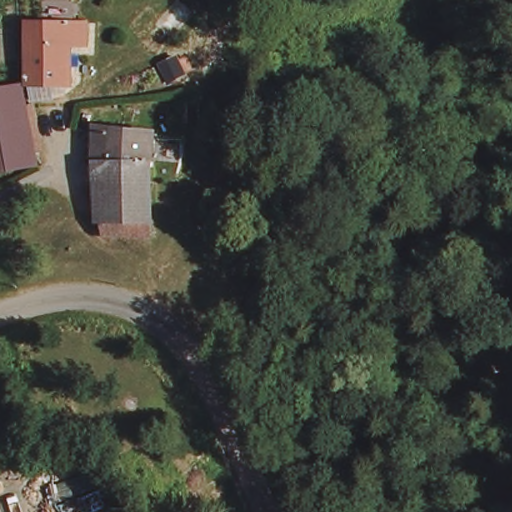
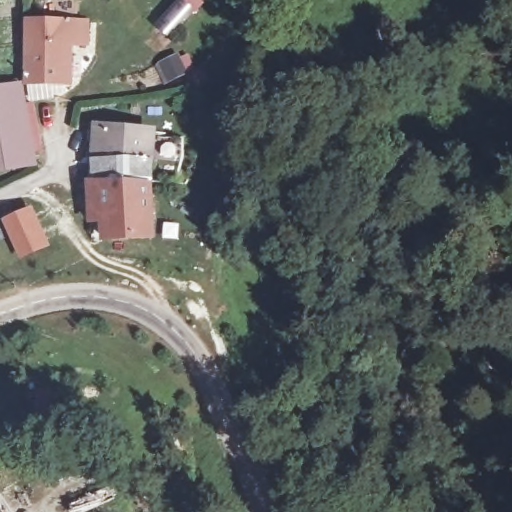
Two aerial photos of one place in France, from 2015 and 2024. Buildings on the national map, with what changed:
unchanged [(59,92),(59,97),(37,98),(35,80),(34,80),(39,20),(78,24),(99,26),(97,44),(77,42),(73,83),(72,83),(72,92),(59,92)]
unchanged [(37,143),(38,155),(0,163),(0,120),(1,120),(0,113),(0,85),(28,81),(37,143)]
unchanged [(97,182),(96,126),(147,125),(148,180),(97,182)]
unchanged [(148,180),(150,234),(99,235),(97,182),(148,180)]
new [(32,206),(50,245),(20,259),(1,220),(32,206)]

